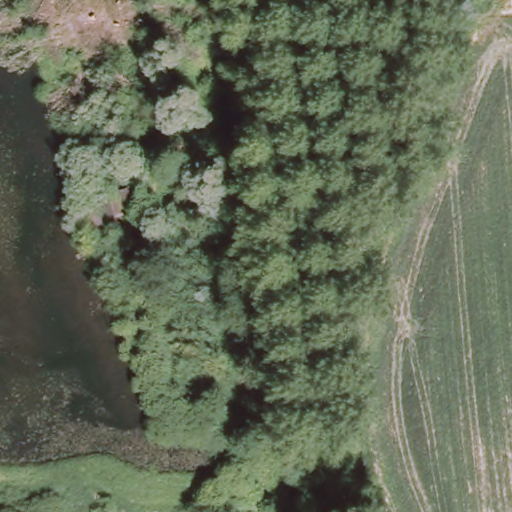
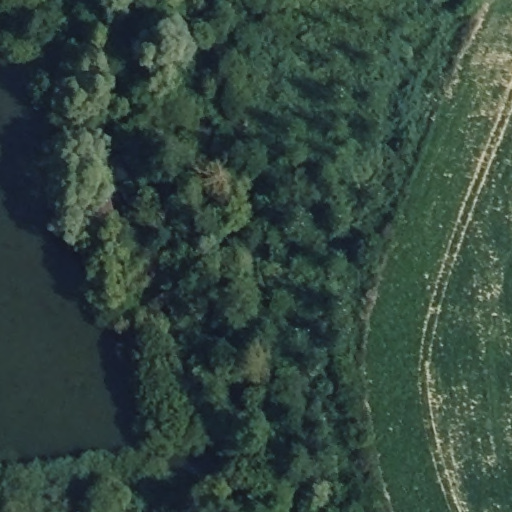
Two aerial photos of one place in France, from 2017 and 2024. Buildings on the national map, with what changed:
unchanged [(74,225),(89,222),(86,212),(105,207),(114,240),(95,246),(93,240),(77,244),(74,225)]

